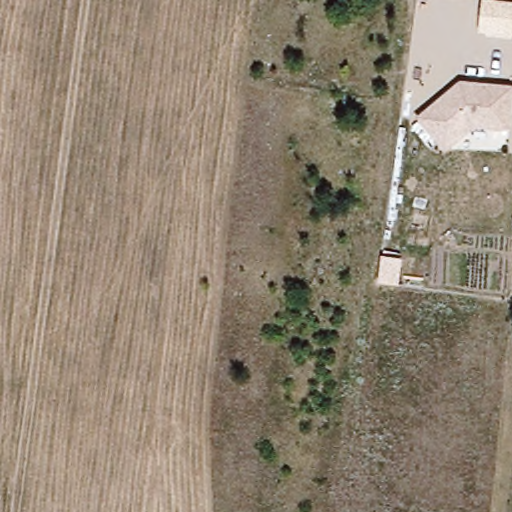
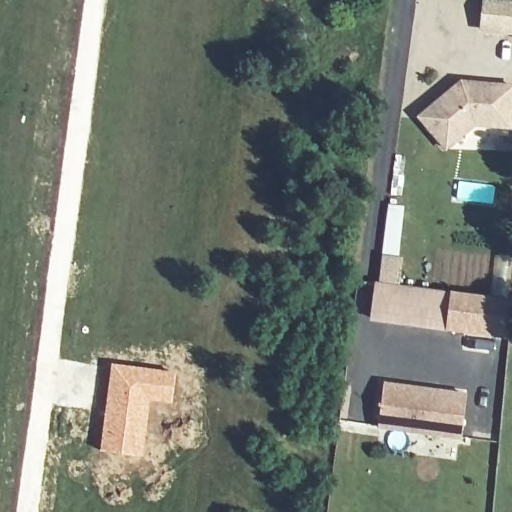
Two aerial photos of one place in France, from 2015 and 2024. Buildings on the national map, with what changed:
unchanged [(512,35),(478,30),(483,0),(496,0),(512,2),(512,35)]
unchanged [(512,114),(511,131),(477,127),(447,152),(417,117),(460,80),(512,85),(512,114)]
new [(448,295),(511,302),(507,340),(443,332),(448,295)]
new [(111,362),(175,372),(171,403),(150,401),(142,457),(99,451),(111,362)]
new [(382,384),(465,395),(459,438),(376,427),(382,384)]

